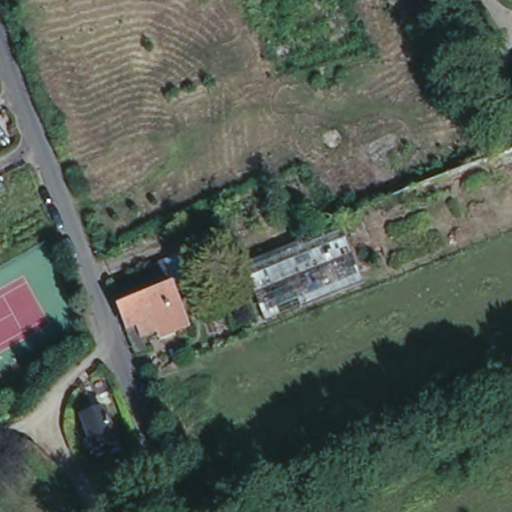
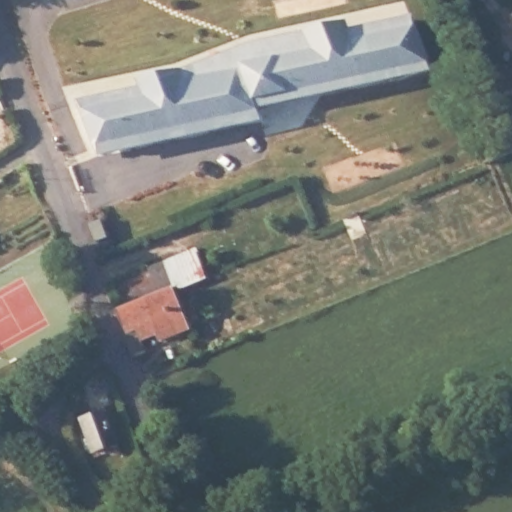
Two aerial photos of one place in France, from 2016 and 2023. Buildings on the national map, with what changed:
new [(157,91),(154,82),(184,76),(260,45),(356,23),(358,30),(422,15),(437,64),(406,75),(370,80),(342,89),(300,96),(266,106),(271,116),(235,128),(209,129),(171,140),(142,145),(111,154),(91,104),(157,91)]
unchanged [(7,174),(22,167),(27,179),(14,185),(7,174)]
unchanged [(342,224),(361,274),(263,312),(243,261),(342,224)]
unchanged [(157,336),(154,328),(140,332),(144,344),(134,347),(115,299),(176,282),(192,323),(176,328),(176,330),(157,336)]
unchanged [(102,406),(114,437),(107,441),(107,444),(97,449),(95,444),(90,447),(77,415),(102,406)]

